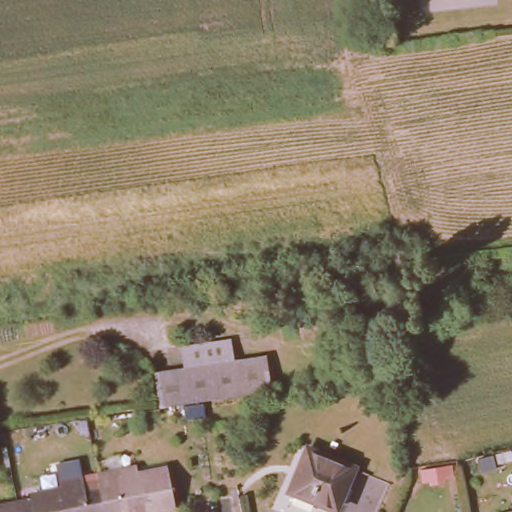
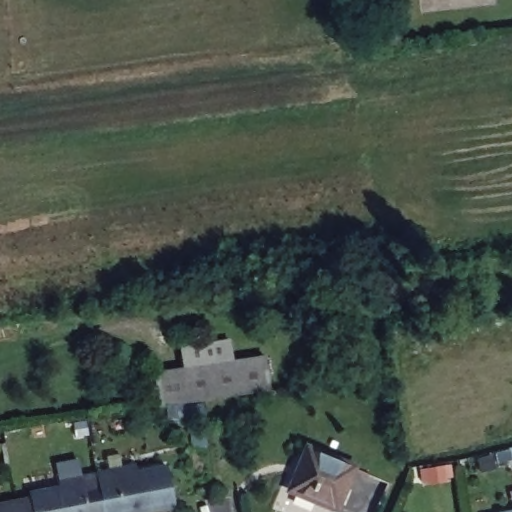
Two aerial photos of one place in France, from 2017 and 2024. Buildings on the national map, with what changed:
unchanged [(269,355),(275,390),(233,396),(166,406),(160,371),(269,355)]
unchanged [(308,447),(354,466),(336,509),(290,489),(308,447)]
unchanged [(22,500),(36,497),(35,492),(64,486),(63,481),(65,479),(63,465),(81,462),(84,476),(86,476),(90,491),(105,488),(110,512),(24,512),(22,500)]
unchanged [(141,465),(143,471),(173,465),(180,507),(156,512),(110,512),(105,488),(102,472),(141,465)]
unchanged [(22,500),(24,512),(0,512),(0,505),(22,500)]

